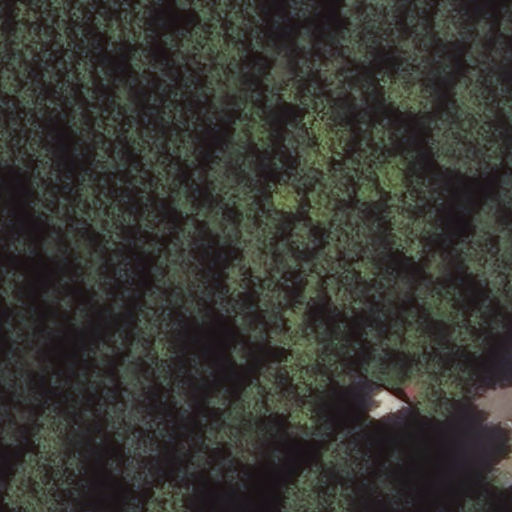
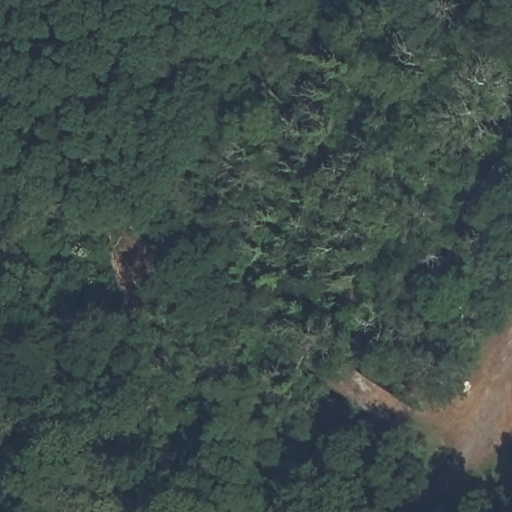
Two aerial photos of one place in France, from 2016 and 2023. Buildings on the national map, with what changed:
unchanged [(422,400),(407,388),(427,367),(441,381),(422,400)]
unchanged [(451,512),(442,512),(447,507),(451,512)]

